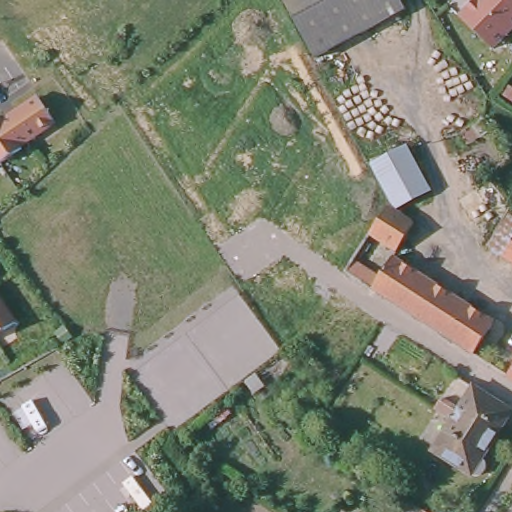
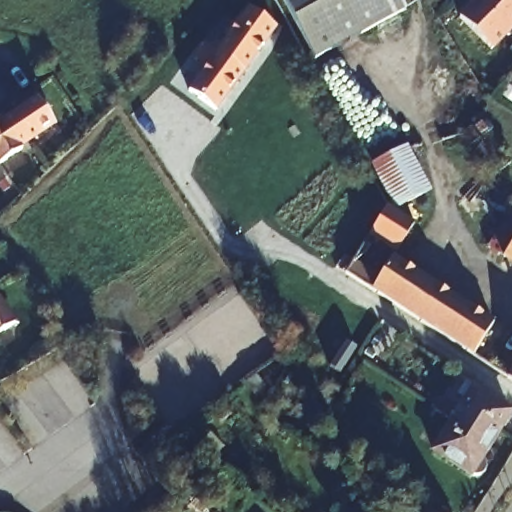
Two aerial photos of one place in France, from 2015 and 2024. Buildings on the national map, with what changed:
new [(212,62),(199,55),(209,38),(222,46),(250,0),(251,0),(279,17),(224,105),(195,87),(212,62)]
unchanged [(369,0),(393,0),(400,14),(381,24),(312,59),(282,0),(369,0)]
unchanged [(512,0),(512,32),(495,52),(460,24),(479,0),(512,0)]
unchanged [(7,118),(42,95),(59,120),(32,138),(23,144),(25,146),(4,161),(2,161),(1,159),(0,159),(0,118),(5,115),(7,118)]
unchanged [(470,127),(482,120),(490,131),(468,146),(460,134),(470,127)]
unchanged [(401,144),(423,186),(390,204),(385,195),(368,160),(401,144)]
unchanged [(410,219),(391,247),(363,230),(382,200),(410,219)]
unchanged [(510,220),(512,220),(512,260),(493,247),(510,220)]
unchanged [(489,318),(468,351),(435,330),(400,307),(370,288),(367,286),(340,269),(347,256),(374,273),(387,254),(489,318)]
unchanged [(0,330),(0,294),(17,319),(0,330)]
unchanged [(512,366),(512,376),(507,373),(512,366)]
unchanged [(475,452),(480,456),(481,462),(479,467),(475,471),(471,472),(466,472),(427,446),(447,416),(440,412),(428,405),(434,396),(445,403),(452,408),(468,384),(504,407),(475,452)]
unchanged [(426,508),(432,512),(423,512),(426,508)]

